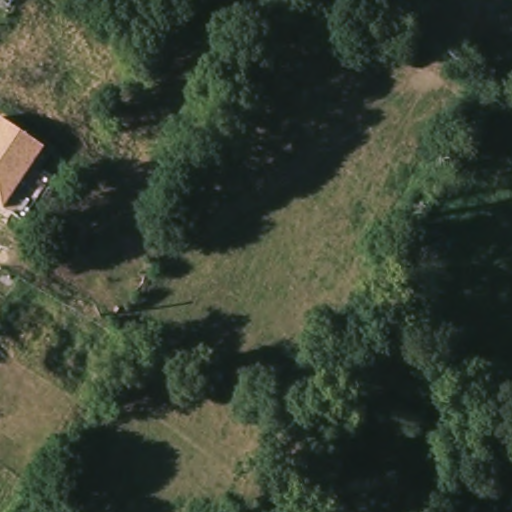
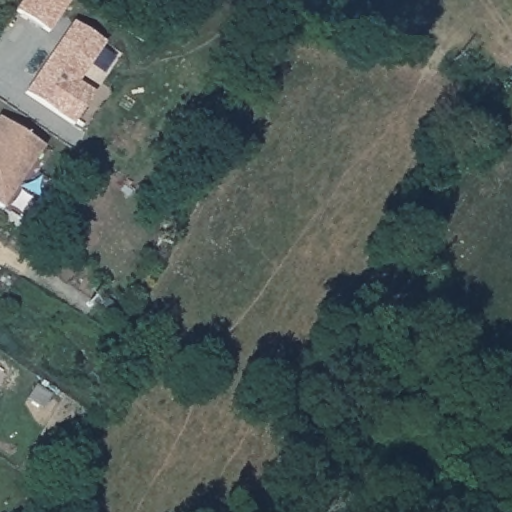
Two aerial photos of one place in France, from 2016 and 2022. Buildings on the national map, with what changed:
new [(71,0),(50,32),(16,10),(23,0),(71,0)]
new [(74,24),(105,45),(78,84),(95,95),(73,126),(26,94),(74,24)]
unchanged [(0,205),(0,120),(45,148),(5,209),(0,205)]

